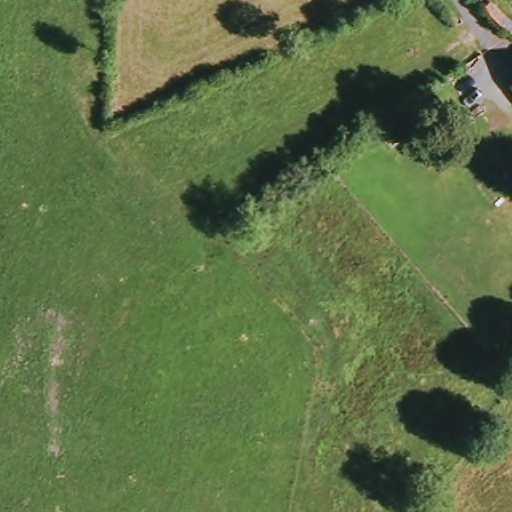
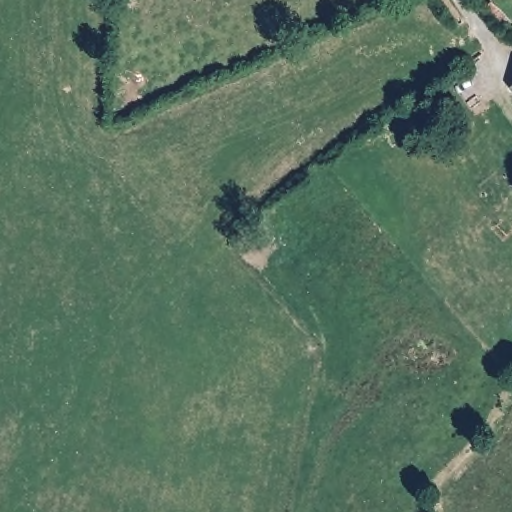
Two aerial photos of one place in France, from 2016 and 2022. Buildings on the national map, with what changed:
unchanged [(507,87),(512,83),(512,94),(507,87)]

